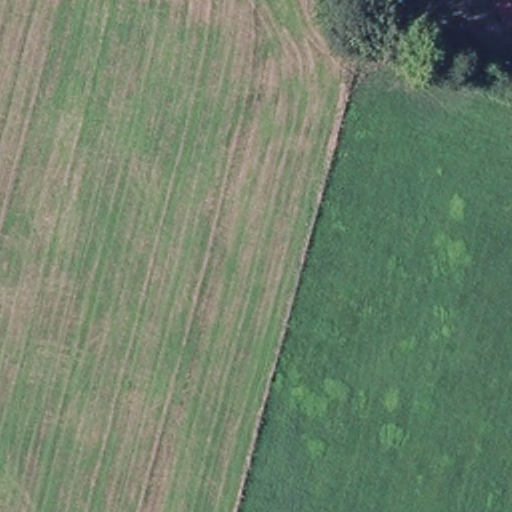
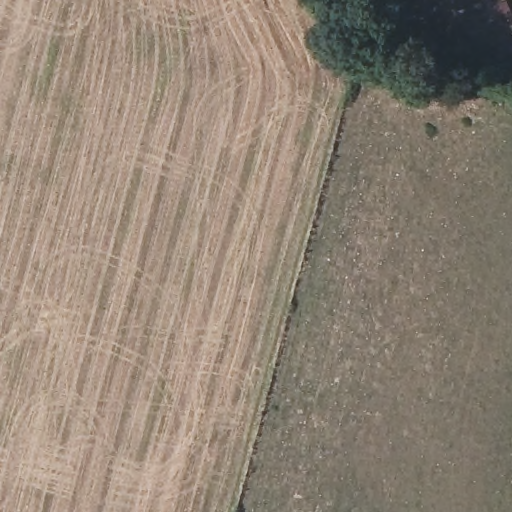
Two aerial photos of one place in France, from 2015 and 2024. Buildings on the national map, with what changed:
[]

